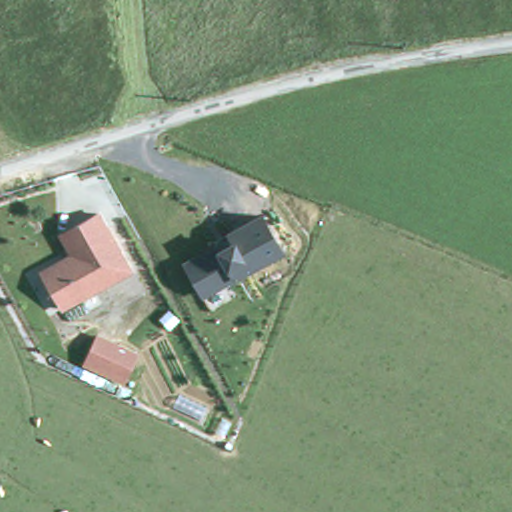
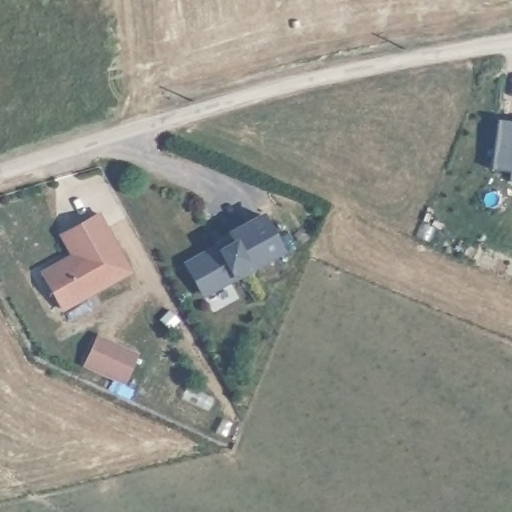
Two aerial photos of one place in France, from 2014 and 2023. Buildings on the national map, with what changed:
new [(512,171),(490,168),(495,117),(512,120),(512,171)]
unchanged [(263,209),(287,252),(203,296),(183,260),(263,209)]
unchanged [(100,210),(136,273),(62,312),(37,268),(67,252),(58,232),(100,210)]
unchanged [(142,353),(126,384),(80,364),(97,330),(142,353)]

